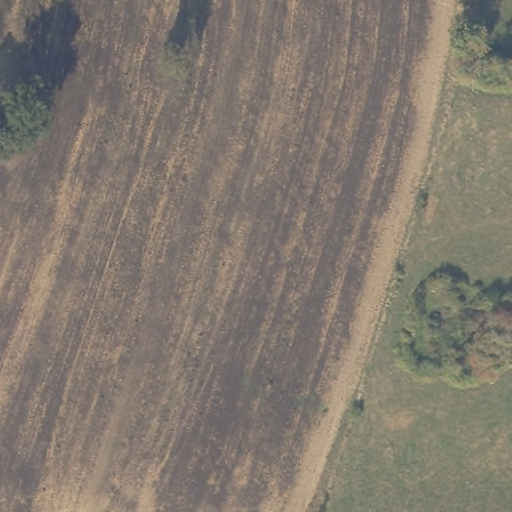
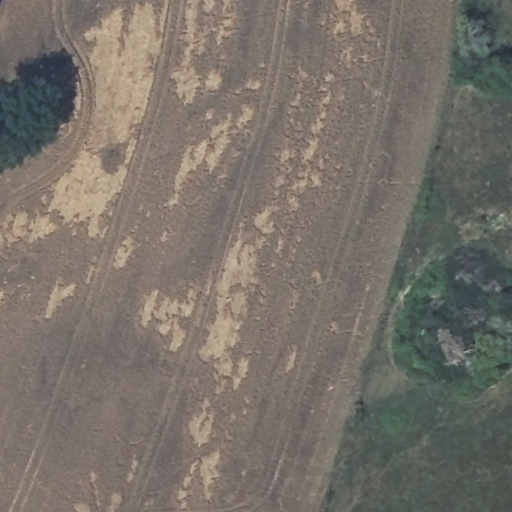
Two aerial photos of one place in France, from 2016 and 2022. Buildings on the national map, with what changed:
unchanged [(428,357),(417,330),(427,302),(446,289),(428,357)]
unchanged [(473,302),(484,314),(473,349),(456,361),(473,302)]

